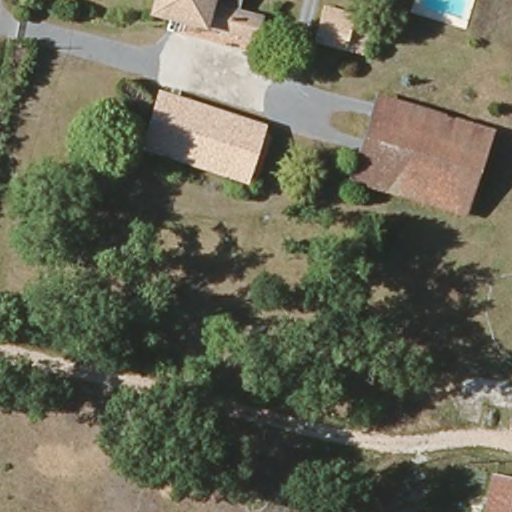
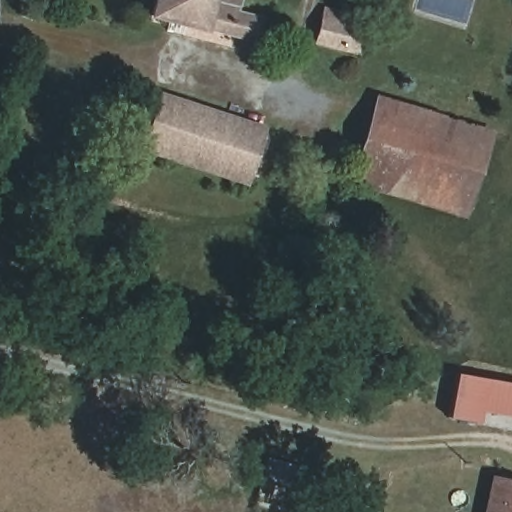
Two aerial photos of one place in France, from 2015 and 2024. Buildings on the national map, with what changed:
unchanged [(245,13),(239,34),(154,12),(157,0),(214,0),(212,3),(245,13)]
unchanged [(229,0),(238,0),(237,2),(229,0)]
unchanged [(366,49),(326,34),(333,14),(373,30),(366,49)]
unchanged [(462,212),(354,172),(382,92),(489,129),(462,212)]
unchanged [(169,95),(270,132),(254,184),(150,143),(169,95)]
new [(481,400),(476,422),(456,417),(465,373),(512,383),(512,406),(481,400)]
unchanged [(512,479),(512,512),(491,512),(500,476),(512,479)]

